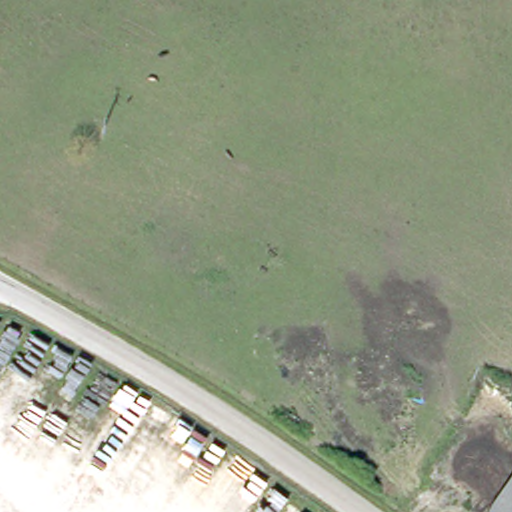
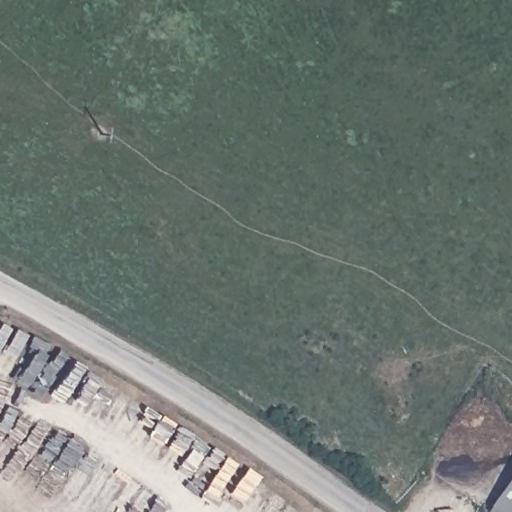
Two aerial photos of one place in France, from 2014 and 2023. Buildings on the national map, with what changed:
unchanged [(512,481),(512,512),(492,512),(491,511),(512,481)]

